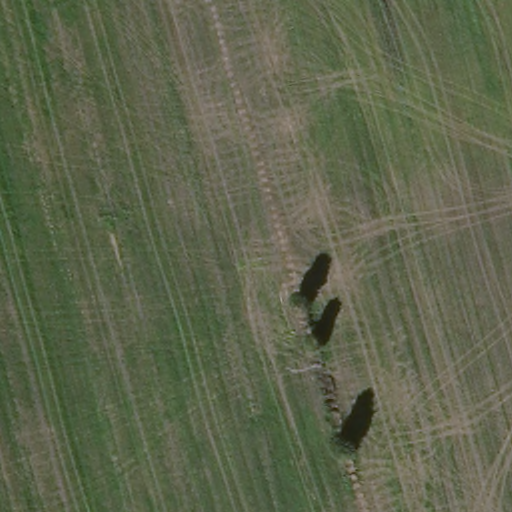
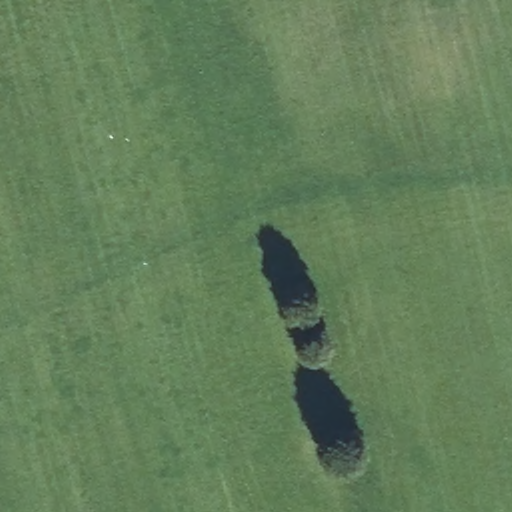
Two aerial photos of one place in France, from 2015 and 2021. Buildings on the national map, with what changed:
[]

